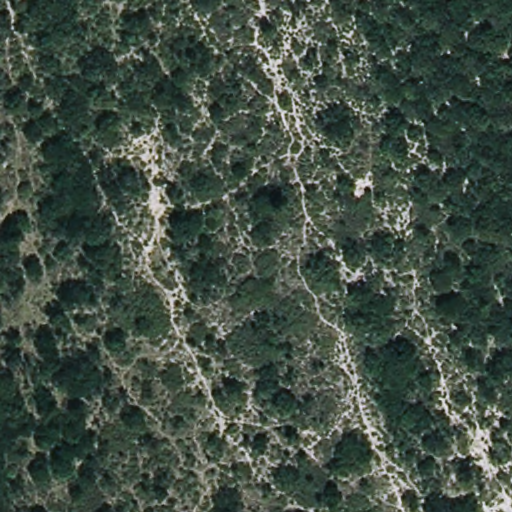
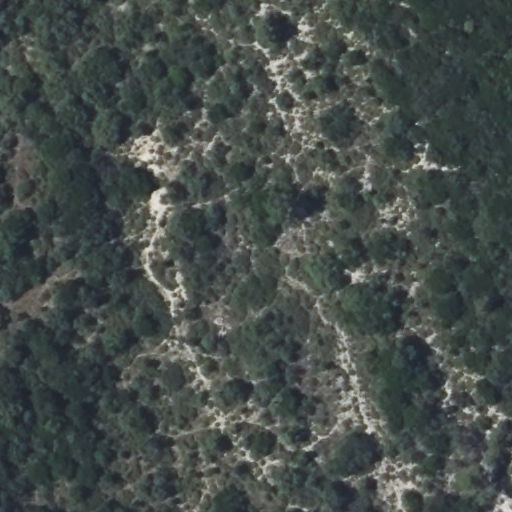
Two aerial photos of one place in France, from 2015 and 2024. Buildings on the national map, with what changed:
[]

